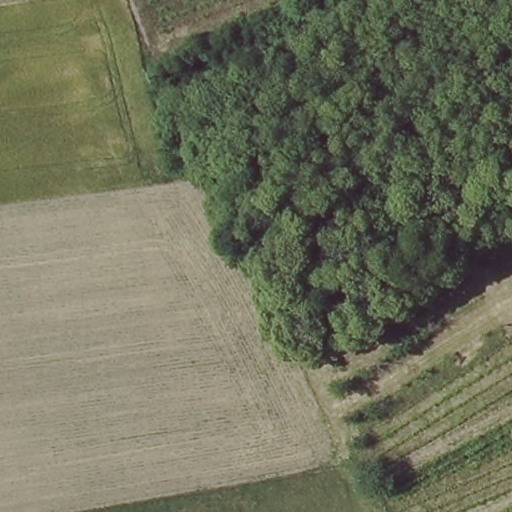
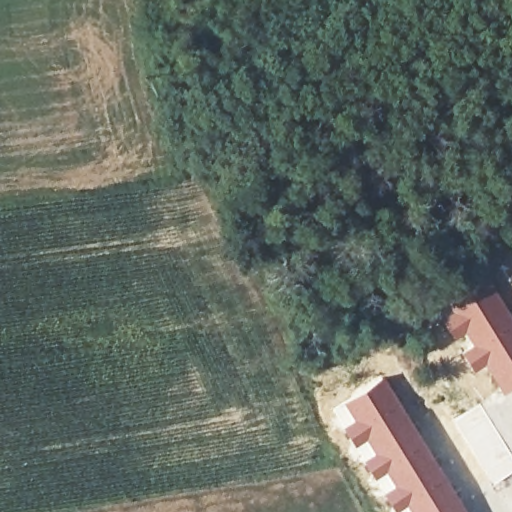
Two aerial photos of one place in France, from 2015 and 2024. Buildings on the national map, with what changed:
new [(448,309),(439,294),(482,267),(512,314),(512,387),(502,392),(483,364),(473,371),(460,350),(471,342),(462,331),(453,337),(439,316),(448,309)]
new [(468,512),(394,512),(359,458),(331,408),(383,375),(468,512)]

